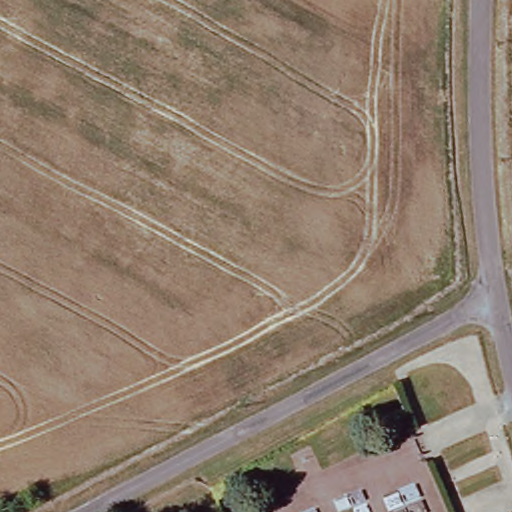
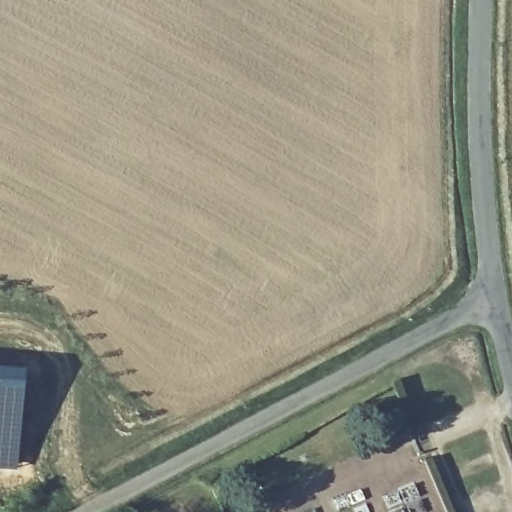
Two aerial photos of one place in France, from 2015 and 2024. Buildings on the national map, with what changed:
new [(17,468),(0,467),(0,366),(22,368),(17,468)]

